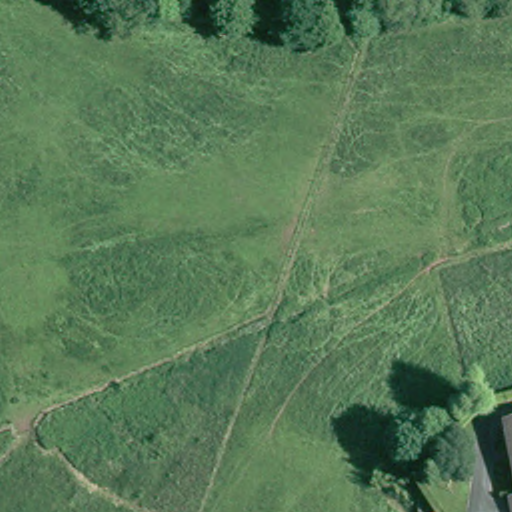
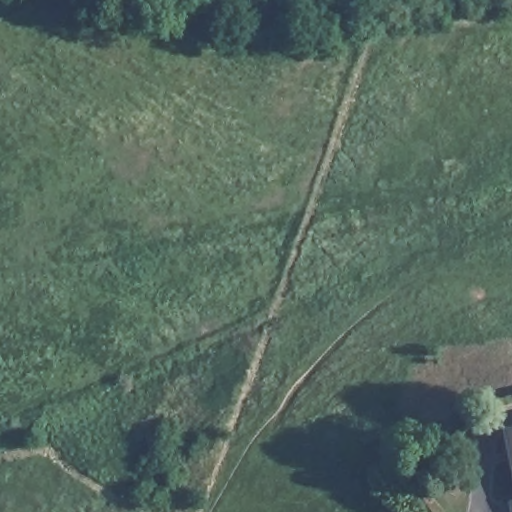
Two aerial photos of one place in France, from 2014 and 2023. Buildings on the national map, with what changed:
unchanged [(510,427),(512,427),(512,435),(510,427)]
unchanged [(512,500),(512,512),(505,512),(503,501),(512,500)]

